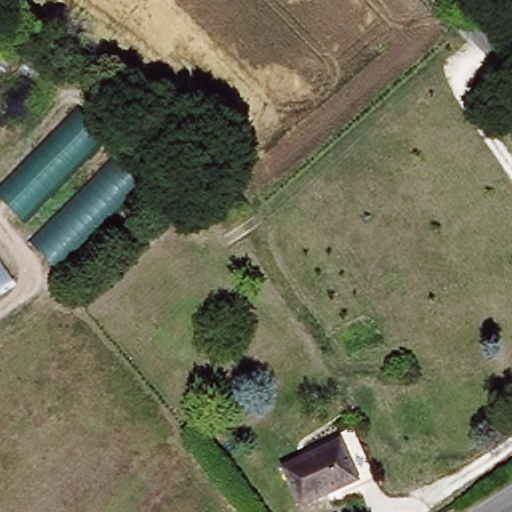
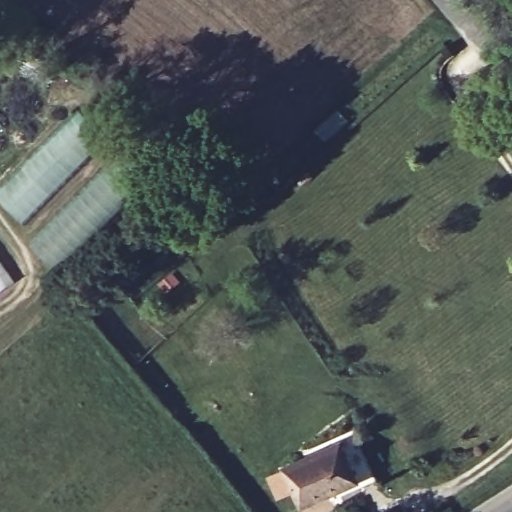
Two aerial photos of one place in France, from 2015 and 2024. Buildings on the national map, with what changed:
unchanged [(153,179),(63,273),(28,239),(35,230),(0,196),(0,185),(79,108),(153,179)]
unchanged [(23,280),(0,295),(0,246),(23,280)]
unchanged [(344,432),(372,483),(328,507),(324,500),(304,512),(296,512),(275,475),(299,461),(298,457),(344,432)]

